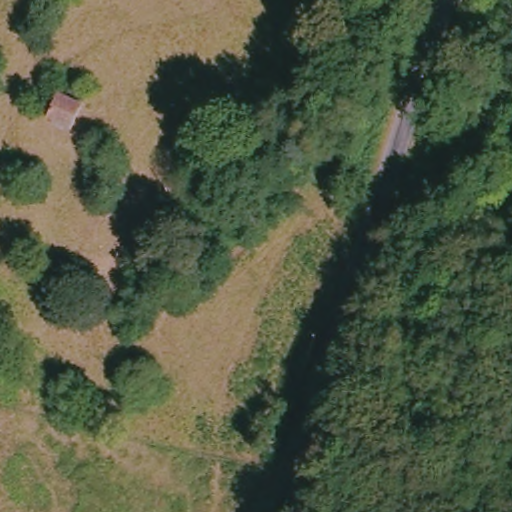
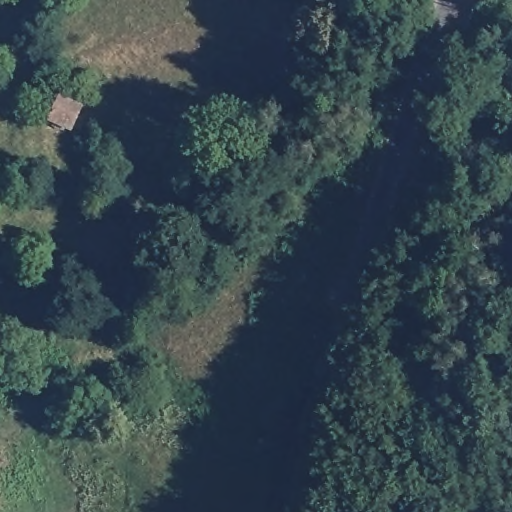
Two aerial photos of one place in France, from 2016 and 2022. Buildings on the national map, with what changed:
unchanged [(59,103),(81,107),(78,130),(56,128),(59,103)]

